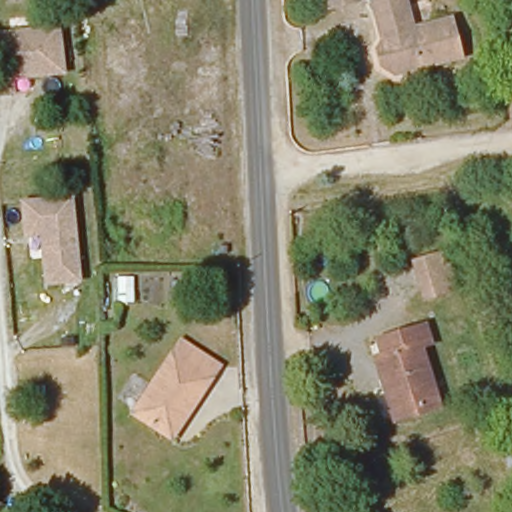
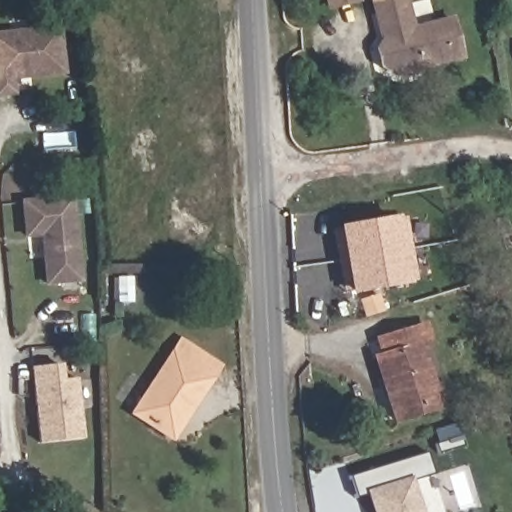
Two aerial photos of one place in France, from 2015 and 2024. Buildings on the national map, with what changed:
unchanged [(334,7),(331,0),(352,0),(334,7)]
unchanged [(461,55),(409,77),(388,76),(379,68),(374,57),(378,35),(364,0),(400,0),(413,28),(446,15),(461,55)]
unchanged [(16,81),(18,96),(1,99),(0,85),(0,38),(63,30),(69,75),(16,81)]
unchanged [(77,202),(84,286),(51,287),(49,238),(31,240),(29,207),(77,202)]
new [(337,227),(399,217),(411,286),(349,296),(337,227)]
unchanged [(455,291),(426,302),(413,263),(442,254),(455,291)]
new [(114,277),(134,277),(134,302),(114,302),(114,277)]
unchanged [(433,347),(420,353),(436,410),(396,422),(378,363),(387,360),(383,343),(426,327),(433,347)]
unchanged [(163,432),(130,410),(178,338),(199,351),(212,359),(218,370),(213,377),(189,415),(174,438),(163,432)]
new [(31,369),(62,366),(64,380),(76,378),(83,440),(39,445),(31,369)]
new [(431,474),(406,481),(414,512),(372,512),(366,492),(352,497),(346,474),(424,452),(431,474)]

